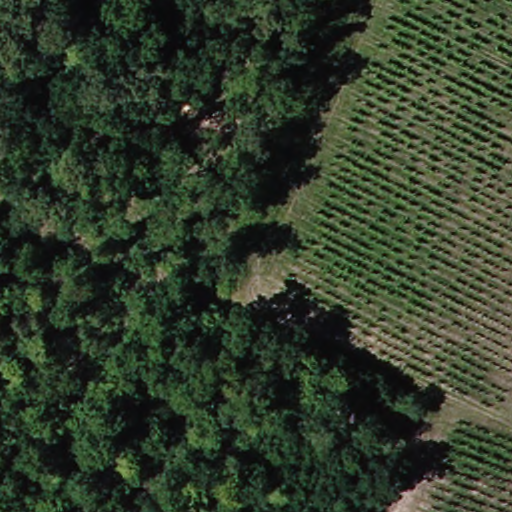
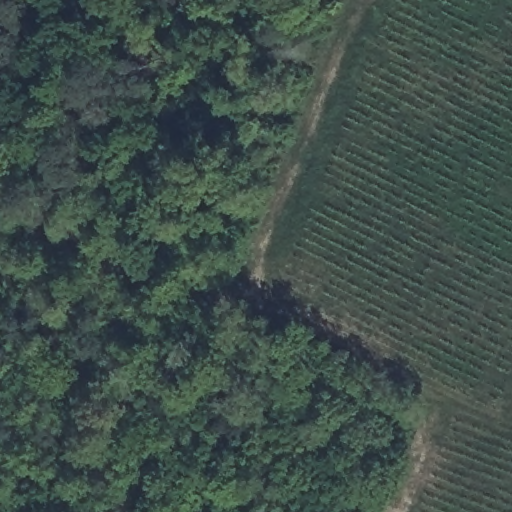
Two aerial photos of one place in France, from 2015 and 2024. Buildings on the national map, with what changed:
[]

